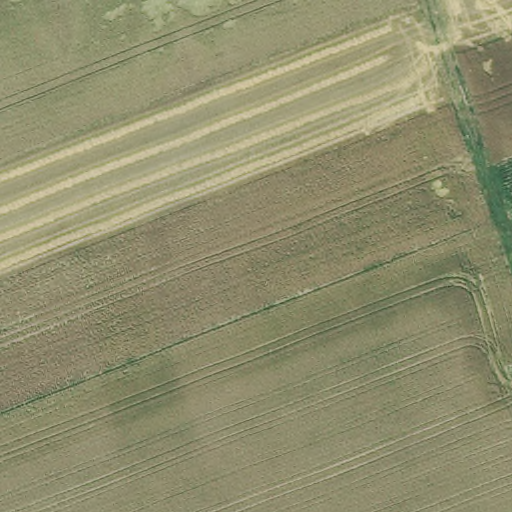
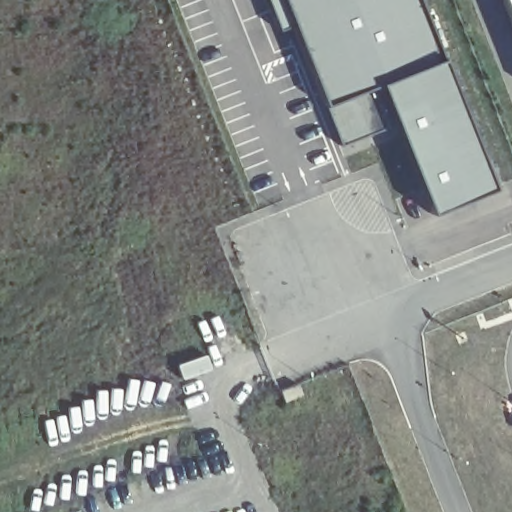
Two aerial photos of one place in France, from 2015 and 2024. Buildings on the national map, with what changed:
new [(501,185),(437,212),(400,120),(342,144),(287,0),(424,0),(448,59),(501,185)]
new [(511,0),(512,0),(512,3),(511,0)]

